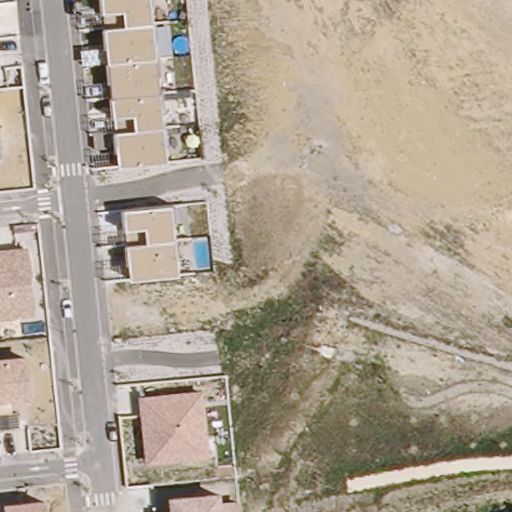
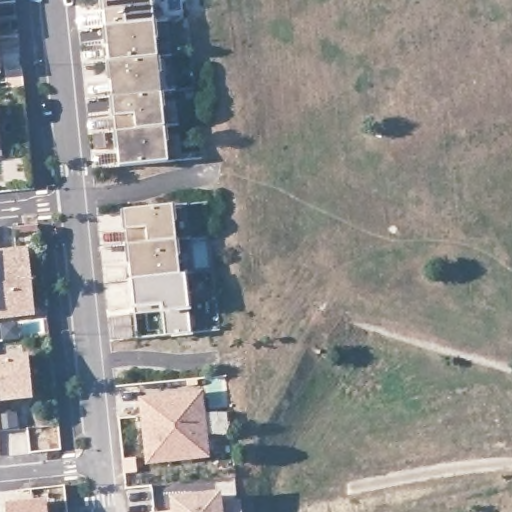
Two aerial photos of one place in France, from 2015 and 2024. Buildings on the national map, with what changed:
unchanged [(115,134),(114,118),(108,63),(104,30),(100,0),(151,0),(153,24),(168,22),(171,56),(158,56),(161,92),(168,163),(119,166),(115,134)]
unchanged [(3,158),(0,158),(0,133),(3,158)]
unchanged [(124,211),(173,205),(180,275),(131,280),(124,211)]
unchanged [(38,318),(0,322),(0,254),(32,251),(38,318)]
new [(180,275),(186,275),(191,335),(166,335),(163,311),(135,314),(131,280),(180,275)]
unchanged [(34,399),(0,401),(0,360),(28,357),(34,399)]
unchanged [(138,398),(203,392),(211,457),(146,464),(138,398)]
unchanged [(168,497),(221,492),(223,504),(242,502),(243,512),(156,512),(170,510),(168,497)]
unchanged [(47,502),(48,512),(6,512),(5,506),(47,502)]

